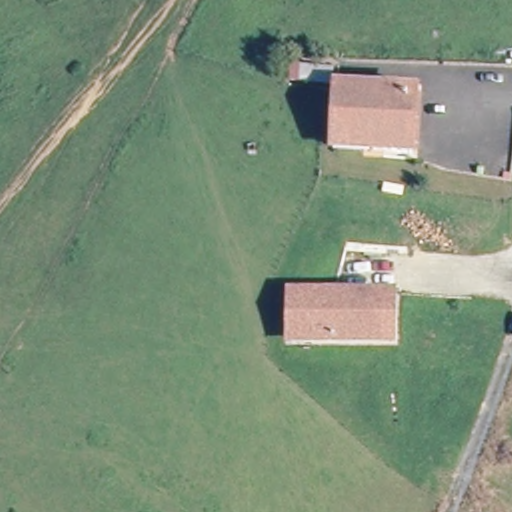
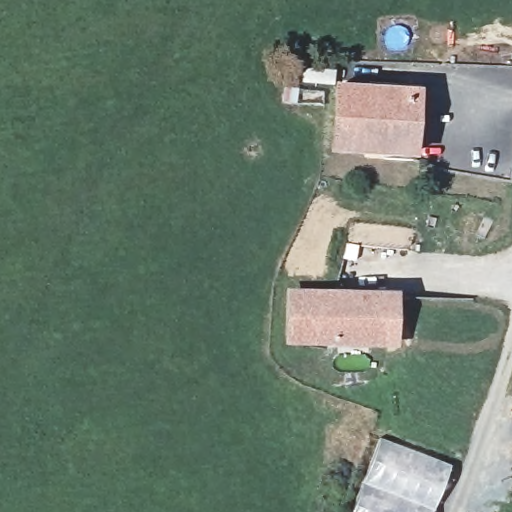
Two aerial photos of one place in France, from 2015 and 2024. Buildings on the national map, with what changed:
unchanged [(409,127),(406,157),(329,151),(331,121),(332,92),(360,93),(362,83),(394,85),(394,95),(412,97),(409,127)]
unchanged [(390,342),(372,341),(287,338),(289,292),(374,296),(391,296),(390,342)]
new [(380,437),(451,465),(433,510),(362,482),(380,437)]
new [(362,482),(433,510),(433,512),(351,512),(362,482)]

